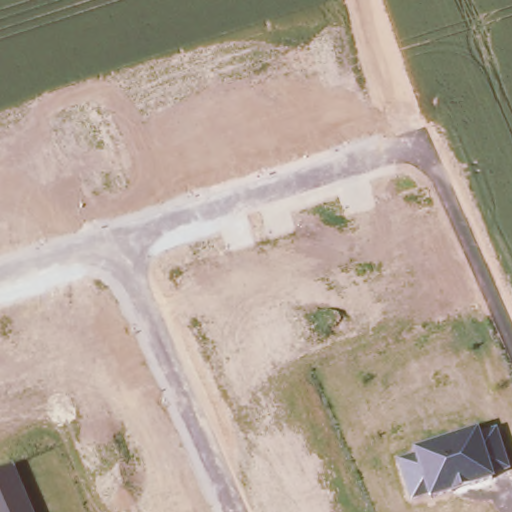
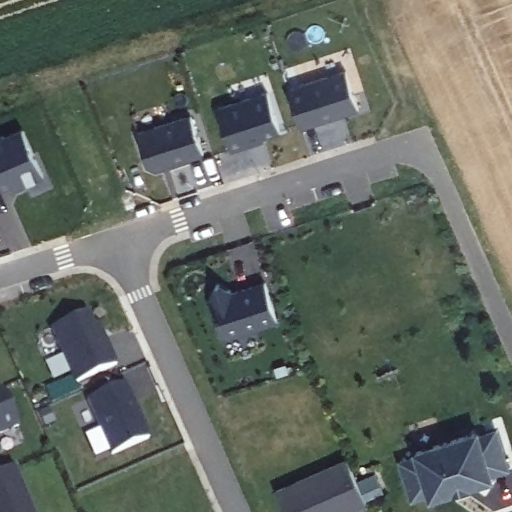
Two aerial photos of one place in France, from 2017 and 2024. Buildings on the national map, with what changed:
new [(342,71),(354,108),(297,126),(285,89),(342,71)]
new [(266,92),(277,130),(228,146),(215,108),(266,92)]
new [(188,115),(200,153),(154,168),(147,165),(136,133),(188,115)]
new [(16,127),(17,130),(23,127),(44,176),(15,188),(12,182),(0,187),(0,134),(16,127)]
new [(212,297),(218,285),(223,284),(234,292),(265,281),(279,322),(223,340),(212,297)]
new [(83,314),(95,341),(101,339),(112,366),(72,383),(48,329),(83,314)]
new [(150,437),(111,454),(87,400),(126,383),(150,437)]
new [(16,425),(0,432),(0,389),(16,425)]
unchanged [(399,460),(415,455),(414,451),(479,429),(480,434),(498,428),(512,471),(494,476),(495,481),(430,501),(429,497),(411,503),(399,460)]
new [(344,458),(364,500),(337,512),(283,512),(273,489),(344,458)]
unchanged [(16,467),(34,512),(0,512),(0,474),(16,467)]

